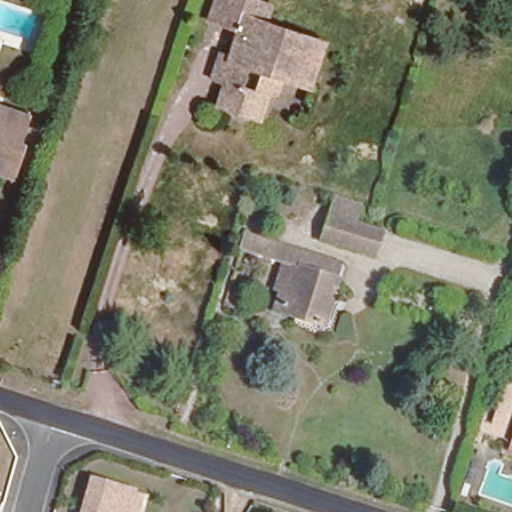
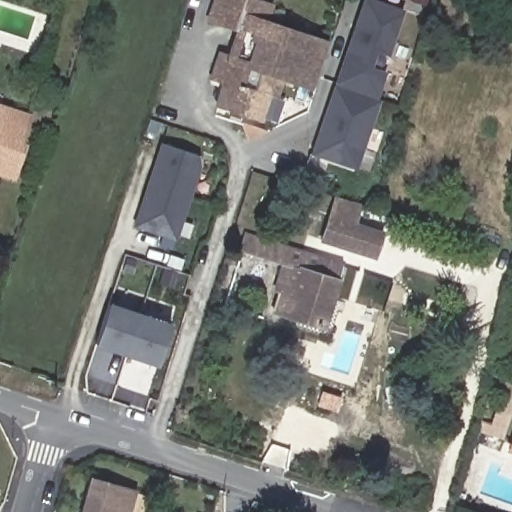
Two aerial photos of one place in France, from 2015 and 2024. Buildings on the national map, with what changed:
unchanged [(255,117),(213,104),(221,81),(208,77),(215,53),(227,57),(235,31),(206,21),(213,0),(256,0),(267,3),(260,23),(319,42),(305,87),(275,77),(269,96),(262,94),(255,117)]
new [(388,55),(377,51),(372,67),(386,72),(377,98),(332,83),(361,0),(377,0),(404,9),(388,55)]
new [(356,169),(309,154),(332,83),(377,98),(380,99),(356,169)]
unchanged [(21,144),(23,144),(13,176),(0,172),(0,107),(29,115),(21,144)]
new [(132,225),(158,141),(198,153),(201,163),(176,238),(132,225)]
unchanged [(332,196),(354,203),(349,218),(378,227),(370,251),(320,235),(332,196)]
unchanged [(321,328),(269,312),(275,291),(271,290),(279,265),(236,251),(241,232),(339,263),(321,328)]
unchanged [(237,309),(226,306),(232,285),(244,289),(237,309)]
new [(157,366),(94,345),(108,301),(170,322),(157,366)]
unchanged [(482,431),(485,420),(493,423),(507,381),(512,383),(512,418),(505,438),(482,431)]
unchanged [(512,448),(512,450),(511,449),(512,448)]
unchanged [(128,512),(84,512),(81,511),(90,479),(133,491),(128,512)]

